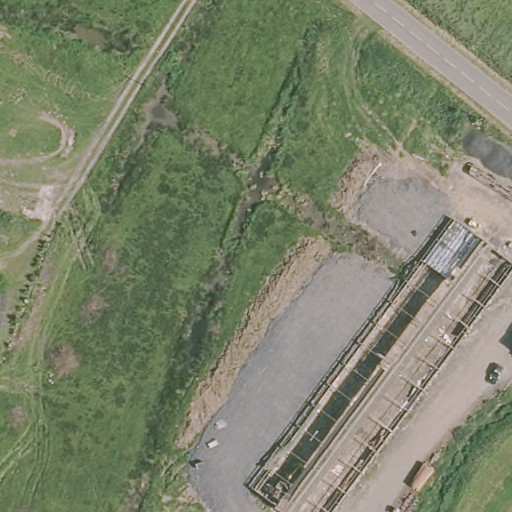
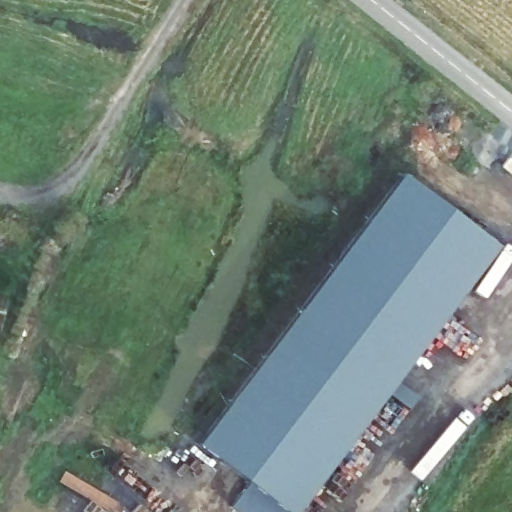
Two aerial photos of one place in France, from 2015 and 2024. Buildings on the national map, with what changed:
new [(230,507),(249,484),(197,445),(401,175),(498,246),(298,512),(236,512),(230,507)]
demolished [(512,262),(512,269),(330,512),(294,512),(252,479),(449,216),(512,262)]
unchanged [(2,292),(0,297),(0,292),(2,292)]

